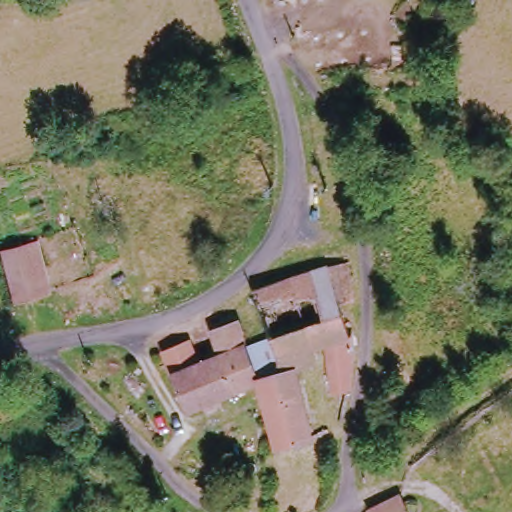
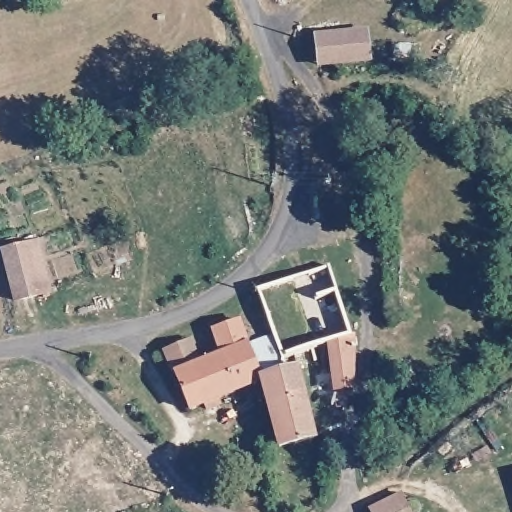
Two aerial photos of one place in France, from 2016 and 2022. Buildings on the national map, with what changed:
new [(316,67),(312,35),(367,29),(371,61),(316,67)]
unchanged [(28,245),(37,242),(47,293),(40,295),(13,301),(2,250),(28,245)]
unchanged [(297,367),(317,435),(282,448),(278,437),(260,385),(286,371),(278,342),(262,292),(333,268),(350,264),(357,305),(344,308),(354,341),(326,349),(310,353),(312,362),(297,367)]
unchanged [(190,412),(177,377),(222,357),(215,333),(241,325),(253,359),(278,342),(286,371),(260,385),(243,392),(190,412)]
unchanged [(358,356),(352,390),(336,392),(326,349),(354,341),(358,356)]
unchanged [(403,493),(413,512),(371,512),(371,510),(403,493)]

